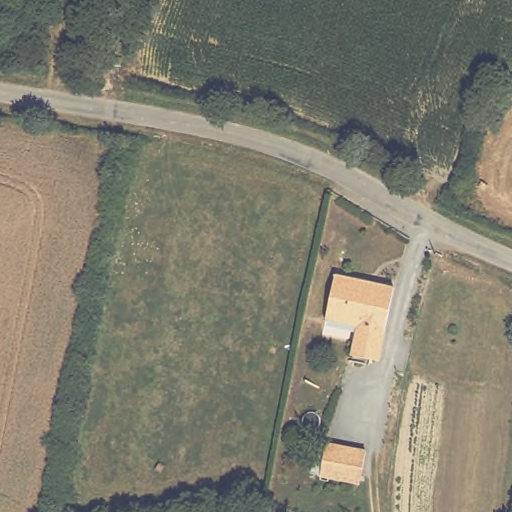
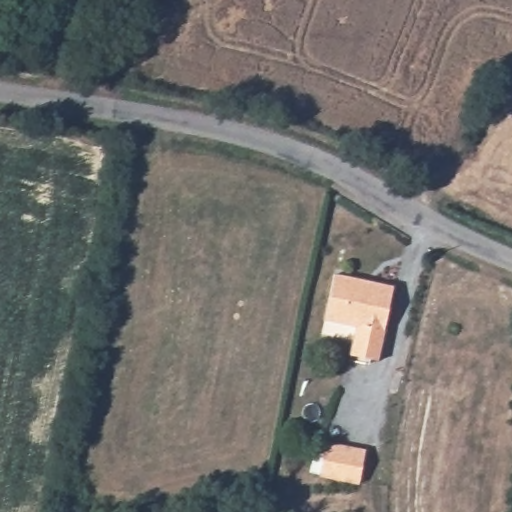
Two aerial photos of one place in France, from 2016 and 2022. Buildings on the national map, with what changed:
unchanged [(392,290),(378,364),(349,359),(355,328),(324,322),(333,278),(392,290)]
unchanged [(372,453),(367,476),(365,486),(350,483),(323,477),(328,455),(318,453),(321,442),(372,453)]

